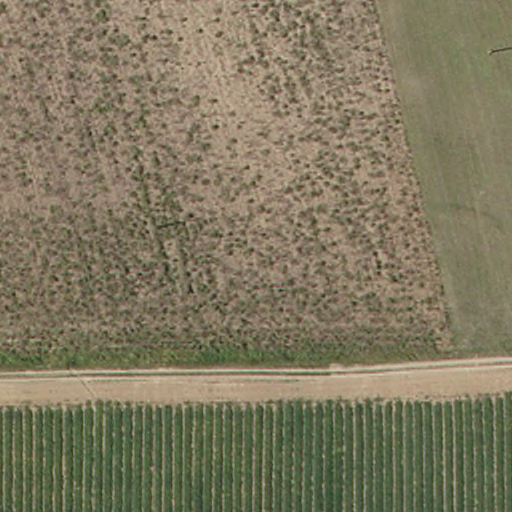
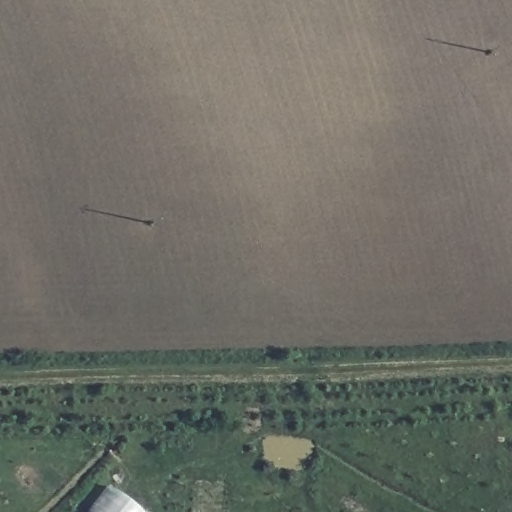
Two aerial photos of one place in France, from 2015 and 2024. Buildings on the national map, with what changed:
new [(142,512),(89,512),(110,485),(142,512)]

